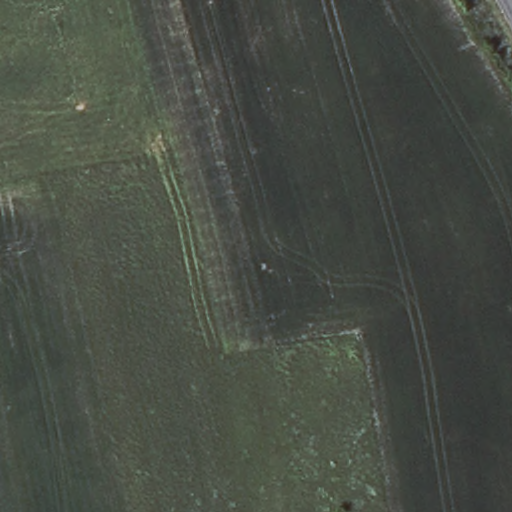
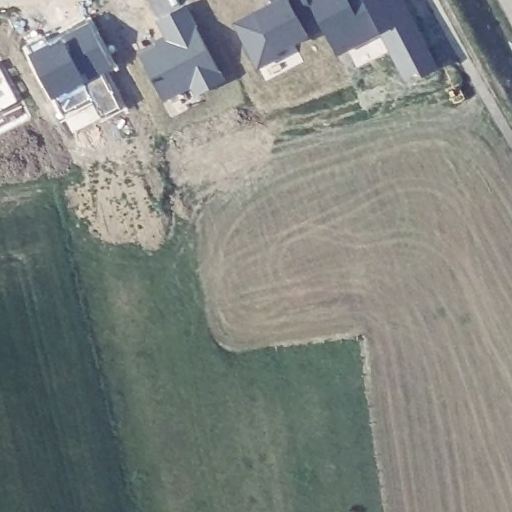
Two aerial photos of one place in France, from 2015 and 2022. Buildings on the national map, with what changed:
new [(266,77),(259,62),(257,62),(235,18),(256,7),(258,11),(275,3),(273,0),(310,0),(322,22),(292,37),(303,57),(266,77)]
new [(346,43),(335,48),(322,22),(310,0),(402,0),(434,62),(422,68),(419,62),(405,70),(392,45),(357,64),(346,43)]
new [(171,115),(162,96),(140,53),(169,38),(157,16),(184,3),(223,79),(196,92),(200,100),(171,115)]
new [(92,24),(116,68),(52,103),(30,55),(92,24)]
new [(0,111),(0,70),(17,101),(0,111)]

